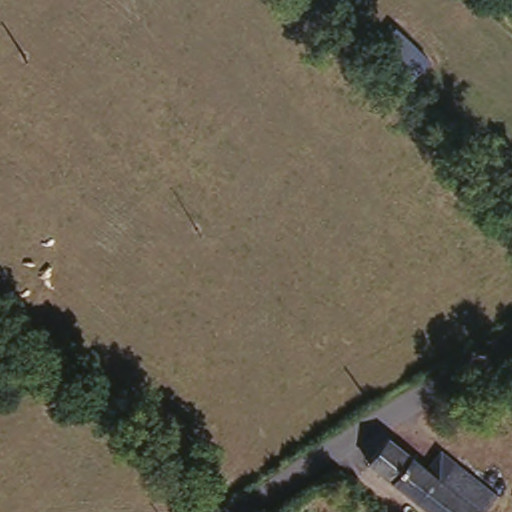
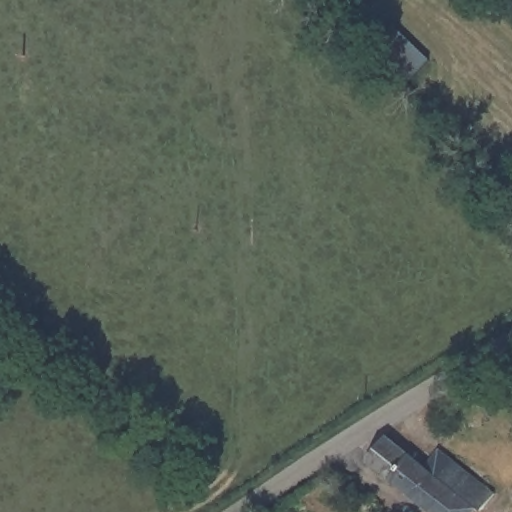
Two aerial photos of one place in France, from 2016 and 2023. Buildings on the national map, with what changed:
unchanged [(366,459),(388,431),(426,458),(442,439),(498,482),(482,503),(473,497),(462,512),(441,512),(439,511),(366,459)]

